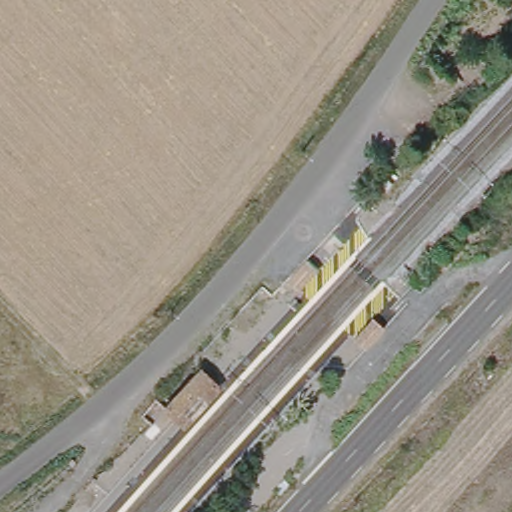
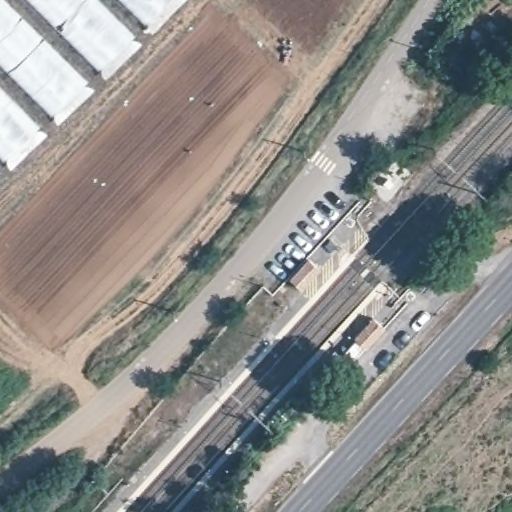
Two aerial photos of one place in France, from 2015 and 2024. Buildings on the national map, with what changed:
new [(0,168),(0,0),(174,0),(0,168)]
unchanged [(308,258),(327,272),(302,299),(284,280),(308,258)]
unchanged [(365,354),(350,340),(379,308),(394,322),(365,354)]
demolished [(155,416),(147,408),(160,392),(169,400),(205,362),(224,379),(187,419),(177,410),(157,432),(147,423),(155,416)]

